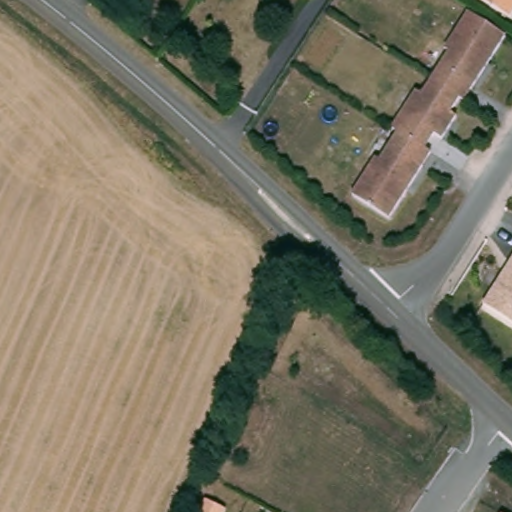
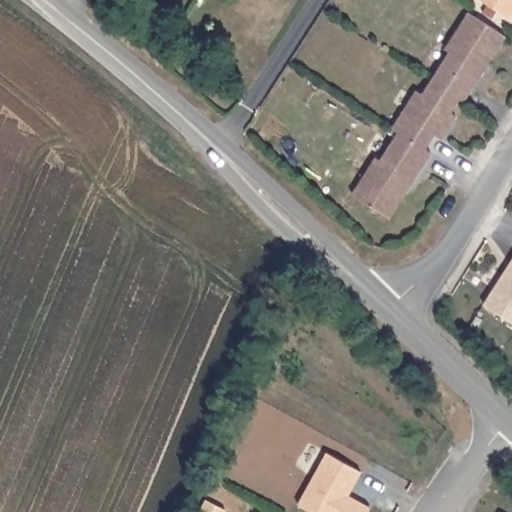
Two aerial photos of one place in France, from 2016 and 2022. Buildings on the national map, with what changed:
unchanged [(512,14),(490,0),(512,0),(512,14)]
unchanged [(506,29),(466,94),(462,91),(453,106),(459,110),(452,120),(445,132),(437,128),(428,142),(435,146),(395,212),(356,190),(380,152),(383,155),(401,125),(396,121),(411,95),(418,85),(424,89),(448,49),(443,46),(469,5),(506,29)]
unchanged [(512,271),(512,321),(488,305),(512,271)]
new [(349,495),(369,506),(366,512),(309,512),(297,506),(326,451),(361,471),(349,495)]

